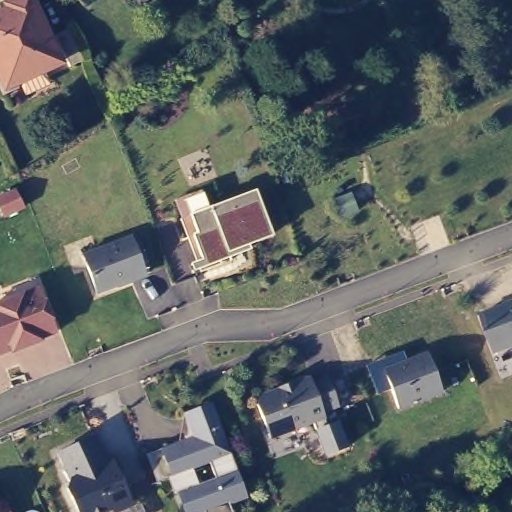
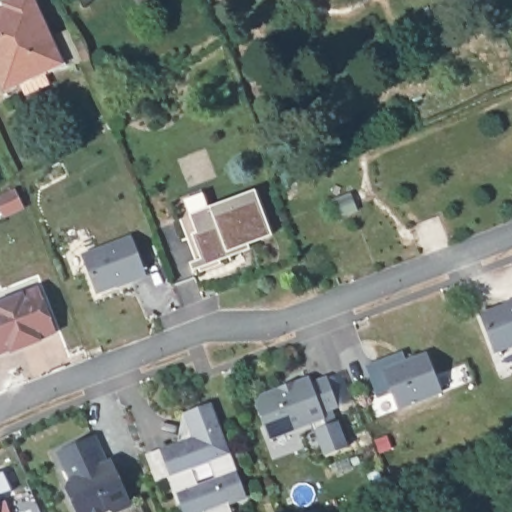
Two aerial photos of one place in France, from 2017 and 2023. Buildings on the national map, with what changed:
unchanged [(11,5),(24,0),(35,0),(65,65),(10,89),(0,69),(0,16),(13,10),(11,5)]
unchanged [(272,238),(246,247),(247,252),(193,274),(187,264),(199,257),(190,234),(195,231),(188,215),(254,190),(272,238)]
unchanged [(96,299),(77,256),(131,237),(147,281),(96,299)]
unchanged [(0,359),(0,301),(38,287),(57,337),(0,359)]
unchanged [(476,310),(512,297),(512,347),(493,354),(476,310)]
unchanged [(442,393),(397,410),(387,389),(376,391),(366,363),(400,351),(405,360),(424,353),(442,393)]
unchanged [(326,458),(312,425),(267,442),(255,407),(260,394),(312,374),(314,380),(326,374),(339,407),(334,409),(350,448),(326,458)]
unchanged [(231,512),(182,512),(167,478),(155,482),(144,454),(177,442),(182,412),(210,401),(249,496),(229,507),(231,512)]
unchanged [(123,512),(112,512),(110,511),(109,512),(74,512),(60,483),(67,479),(55,455),(97,435),(109,464),(115,461),(133,507),(133,508),(123,512)]
unchanged [(6,500),(11,512),(0,512),(0,503),(6,500)]

